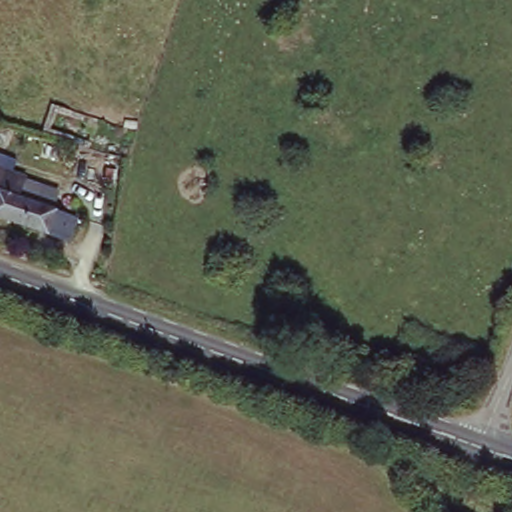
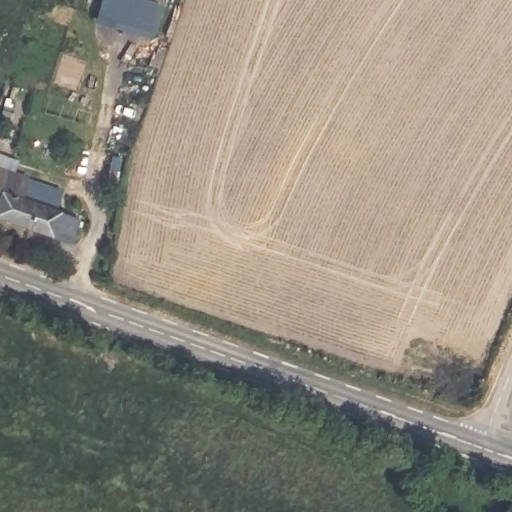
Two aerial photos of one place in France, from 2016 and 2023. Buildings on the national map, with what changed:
new [(160,3),(151,36),(112,25),(119,0),(150,0),(160,3)]
unchanged [(12,171),(27,179),(62,189),(54,214),(19,204),(0,197),(0,155),(17,160),(12,171)]
unchanged [(21,204),(34,207),(73,220),(68,241),(0,219),(0,197),(19,204),(21,204)]

